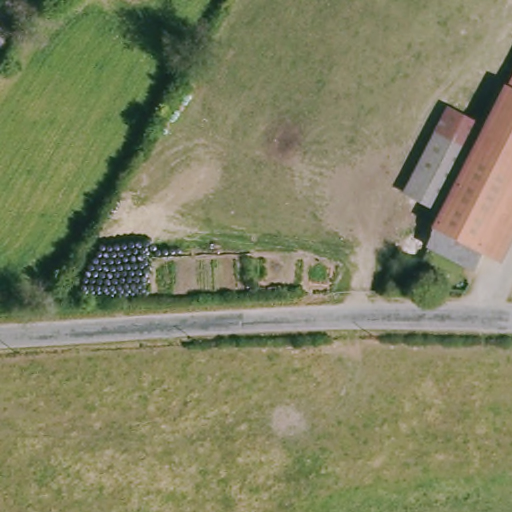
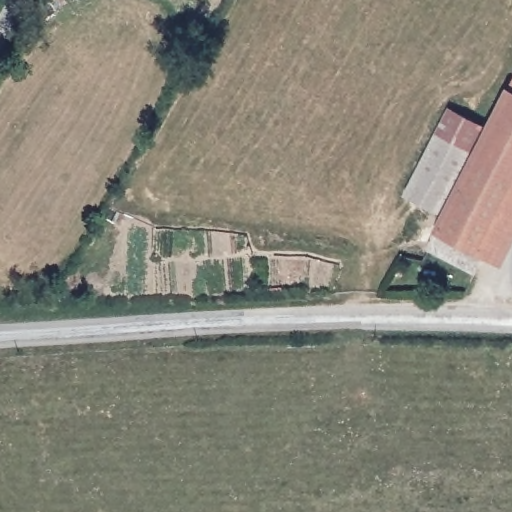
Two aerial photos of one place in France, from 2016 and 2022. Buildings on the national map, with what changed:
unchanged [(448,212),(408,192),(449,107),(491,127),(511,89),(512,87),(512,259),(511,261),(492,252),(479,270),(431,247),(442,225),(448,212)]

